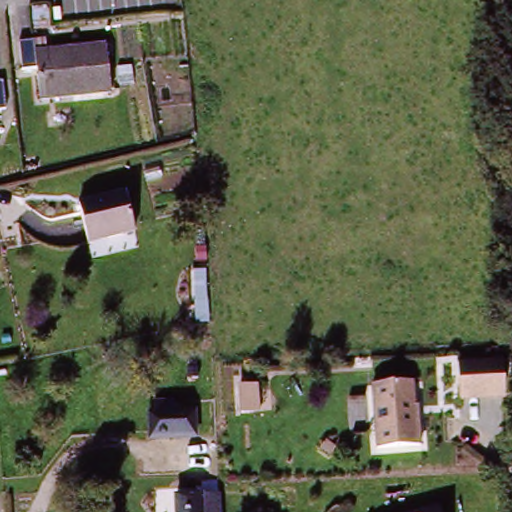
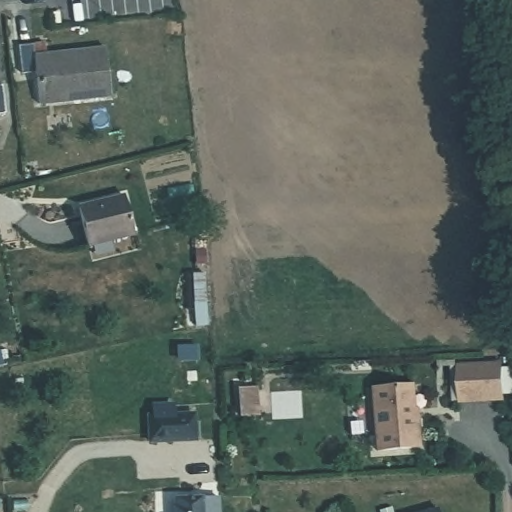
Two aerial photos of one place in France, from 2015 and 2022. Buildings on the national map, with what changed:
unchanged [(114,93),(45,99),(42,70),(27,72),(25,42),(40,41),(51,40),(53,56),(110,49),(114,93)]
unchanged [(0,118),(0,87),(3,118),(0,118)]
unchanged [(122,199),(130,236),(82,246),(75,210),(122,199)]
unchanged [(500,391),(460,392),(460,356),(500,355),(500,391)]
unchanged [(412,387),(413,418),(417,419),(417,451),(375,452),(373,389),(412,387)]
unchanged [(147,407),(195,404),(197,441),(148,443),(147,407)]
unchanged [(195,494),(195,498),(218,497),(219,512),(173,512),(172,495),(195,494)]
unchanged [(421,512),(416,512),(420,511),(421,512)]

